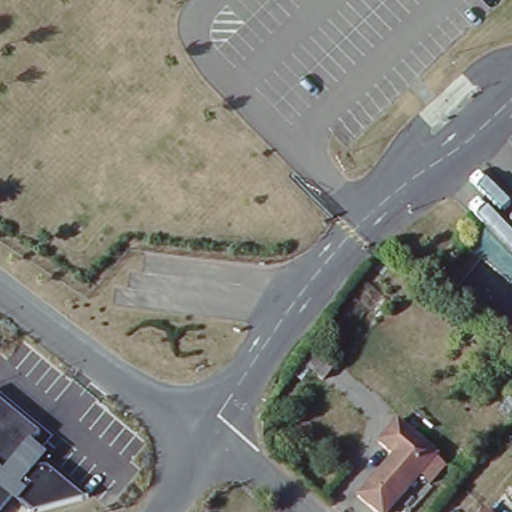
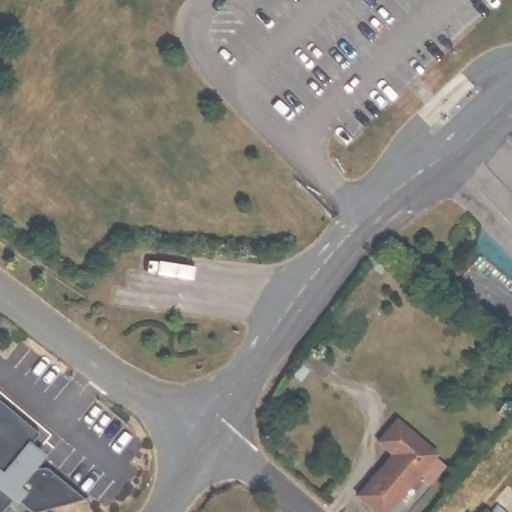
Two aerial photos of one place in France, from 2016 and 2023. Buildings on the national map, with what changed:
unchanged [(327,374),(317,387),(304,376),(294,387),(286,381),(307,356),(327,374)]
unchanged [(502,427),(490,417),(512,392),(512,414),(502,427)]
unchanged [(18,505),(13,501),(3,512),(0,512),(0,402),(39,435),(29,446),(51,462),(45,468),(86,500),(44,512),(29,512),(20,502),(18,505)]
unchanged [(427,488),(416,479),(387,512),(372,512),(356,498),(389,457),(378,447),(396,427),(434,459),(444,469),(427,488)]
unchanged [(441,487),(451,475),(449,473),(465,456),(475,464),(449,494),(441,487)]

